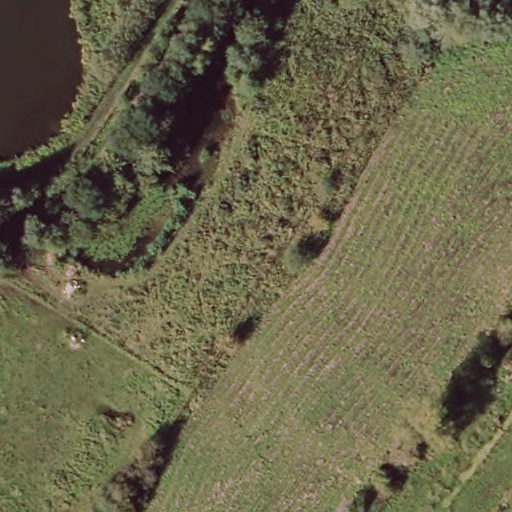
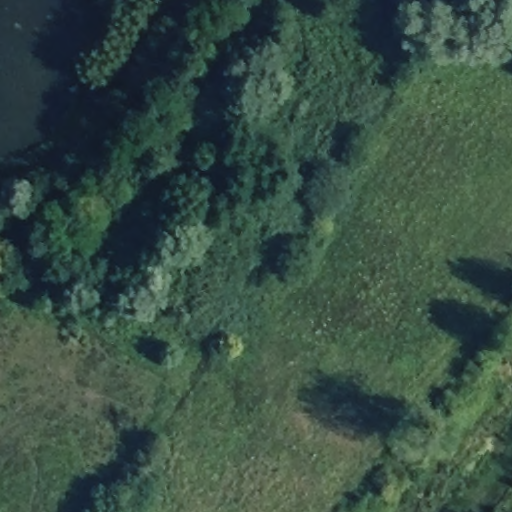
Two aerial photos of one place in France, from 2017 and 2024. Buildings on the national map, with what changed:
[]

